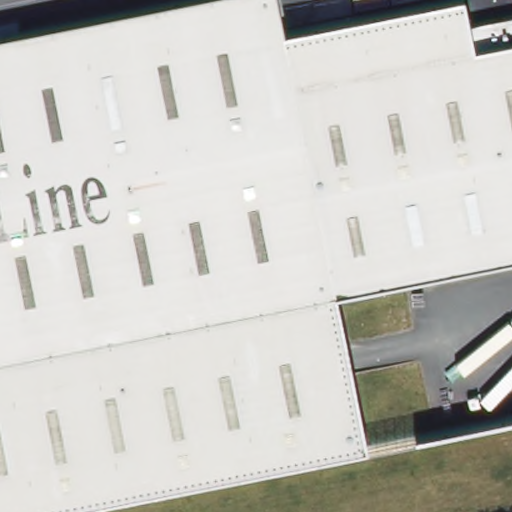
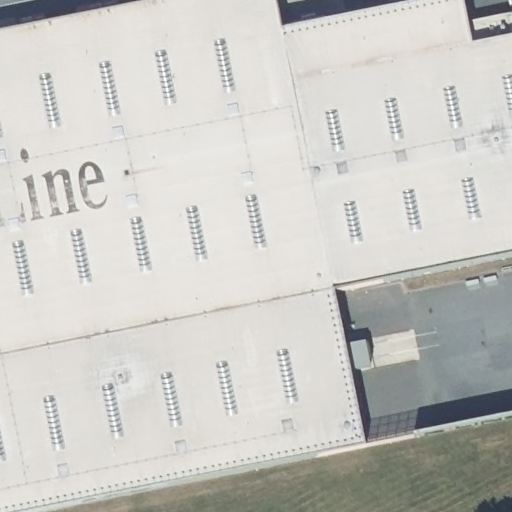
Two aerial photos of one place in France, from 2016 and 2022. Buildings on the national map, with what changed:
unchanged [(280,0),(285,29),(435,0),(468,0),(475,42),(512,35),(512,256),(340,290),(370,444),(31,512),(0,512),(0,33),(168,0),(280,0)]

